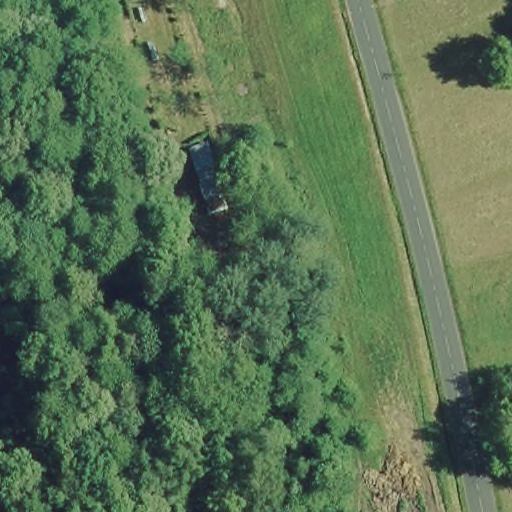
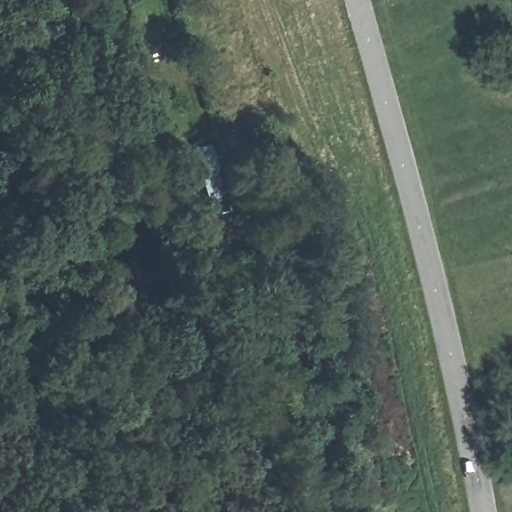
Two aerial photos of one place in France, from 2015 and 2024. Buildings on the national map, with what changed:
unchanged [(232,214),(210,219),(190,150),(211,144),(232,214)]

